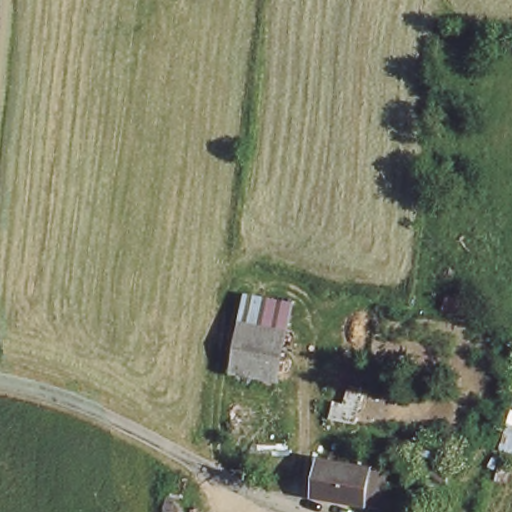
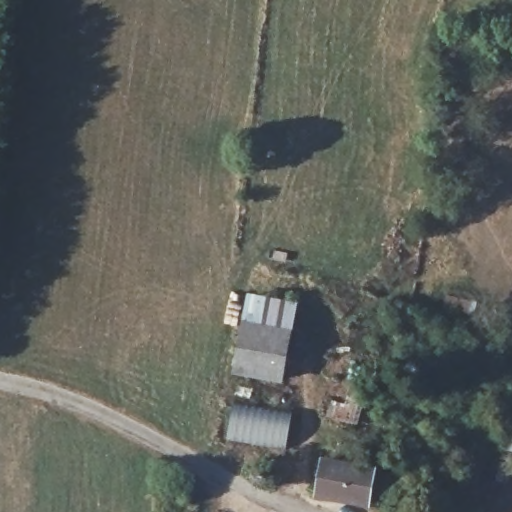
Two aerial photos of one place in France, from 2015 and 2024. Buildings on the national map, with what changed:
unchanged [(294,294),(274,373),(221,365),(238,285),(294,294)]
new [(226,436),(233,403),(291,413),(287,446),(226,436)]
unchanged [(389,477),(383,508),(318,497),(321,464),(389,477)]

